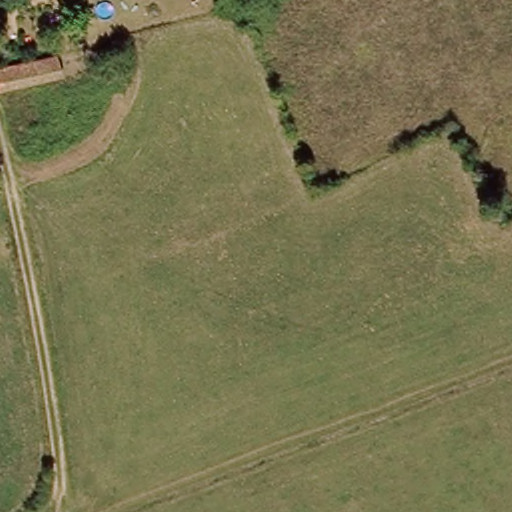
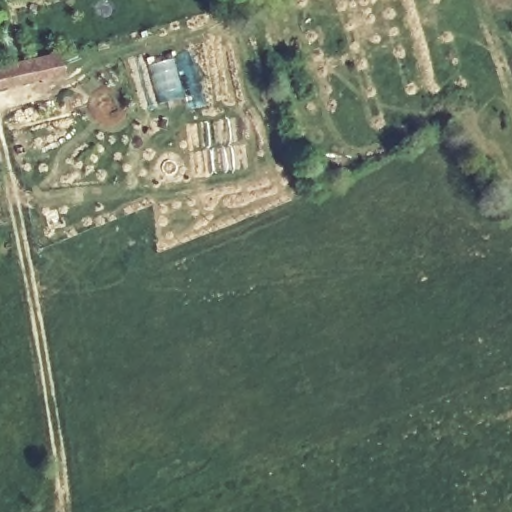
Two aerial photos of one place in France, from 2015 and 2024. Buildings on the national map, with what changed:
unchanged [(5,45),(10,61),(0,65),(0,47),(5,45)]
unchanged [(12,66),(12,69),(60,56),(65,75),(4,92),(2,79),(1,73),(0,70),(12,66)]

